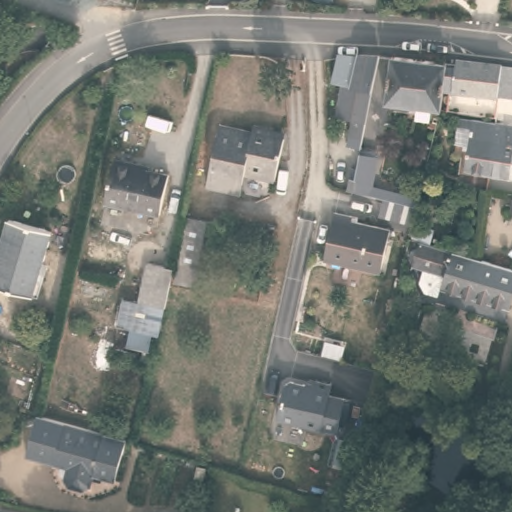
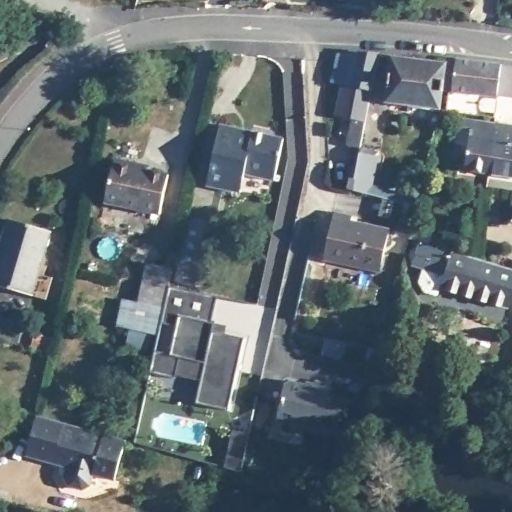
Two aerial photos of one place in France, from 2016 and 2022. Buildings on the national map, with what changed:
unchanged [(373,147),(369,147),(369,150),(362,149),(349,146),(354,120),(338,117),(344,86),(333,84),(339,56),(357,60),(358,55),(380,56),(368,115),(379,117),(373,147)]
unchanged [(447,63),(442,112),(386,105),(392,57),(447,63)]
unchanged [(512,67),(512,98),(452,91),(456,64),(456,59),(512,67)]
unchanged [(468,146),(455,144),(459,117),(471,119),(498,122),(490,175),(464,171),(468,146)]
unchanged [(498,122),(512,124),(512,177),(490,175),(498,122)]
unchanged [(244,176),(240,192),(207,186),(220,125),(253,132),(255,127),(285,133),(284,139),(274,182),(244,176)]
unchanged [(407,205),(354,192),(346,190),(349,180),(355,181),(360,157),(377,161),(371,187),(409,197),(412,188),(420,191),(416,207),(414,217),(405,215),(407,205)]
unchanged [(115,159),(138,164),(137,169),(169,175),(160,214),(105,202),(115,159)]
unchanged [(512,216),(509,216),(512,201),(512,216)]
unchanged [(353,214),(352,219),(390,227),(381,270),(325,258),(335,210),(353,214)]
unchanged [(200,220),(187,285),(172,282),(175,268),(186,217),(200,220)]
unchanged [(10,219),(52,232),(33,297),(0,286),(0,252),(10,219)]
unchanged [(216,222),(205,289),(187,285),(200,220),(216,222)]
unchanged [(512,302),(510,308),(441,287),(444,275),(411,266),(418,242),(409,239),(413,225),(434,231),(430,245),(478,260),(512,270),(512,302)]
unchanged [(116,327),(122,298),(139,303),(148,262),(175,268),(172,282),(160,337),(116,327)]
new [(228,411),(196,404),(201,381),(177,376),(176,379),(149,372),(154,354),(125,347),(129,330),(140,332),(160,337),(157,352),(169,355),(176,326),(163,324),(171,287),(216,297),(212,323),(227,326),(225,334),(243,337),(228,411)]
unchanged [(36,331),(54,336),(49,352),(31,347),(36,331)]
unchanged [(290,382),(314,388),(315,382),(331,386),(328,396),(344,400),(337,433),(277,421),(285,386),(290,382)]
unchanged [(496,386),(509,388),(505,407),(492,405),(496,386)]
unchanged [(126,441),(116,481),(94,476),(91,487),(84,491),(65,486),(61,478),(64,467),(22,457),(33,416),(126,441)]

